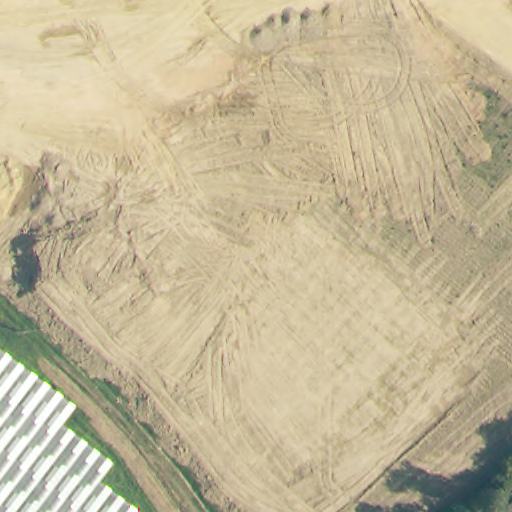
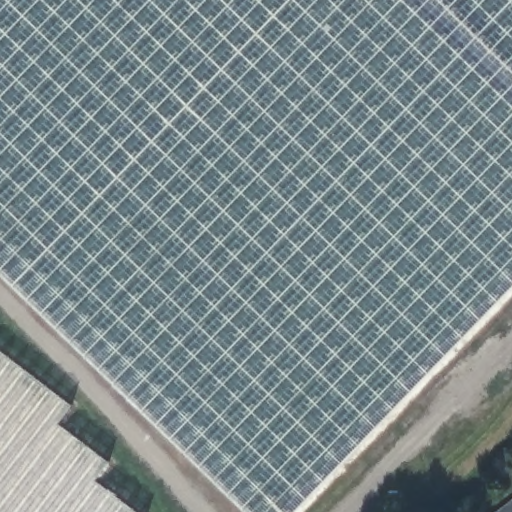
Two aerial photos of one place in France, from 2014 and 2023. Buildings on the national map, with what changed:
new [(512,0),(512,291),(298,512),(248,512),(0,272),(0,0),(512,0)]
unchanged [(70,402),(56,420),(108,459),(94,477),(140,512),(0,512),(0,350),(70,402)]
unchanged [(512,503),(512,512),(500,512),(512,503)]

